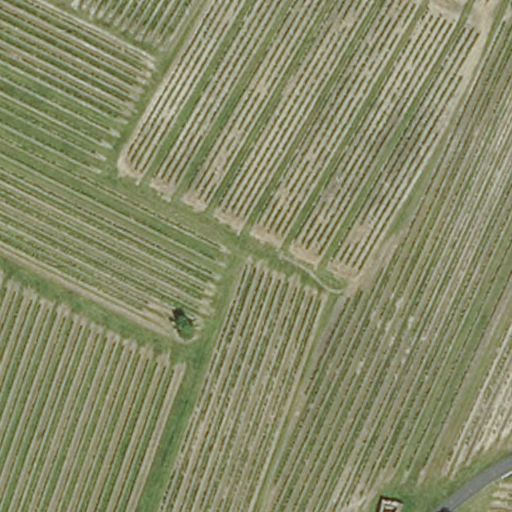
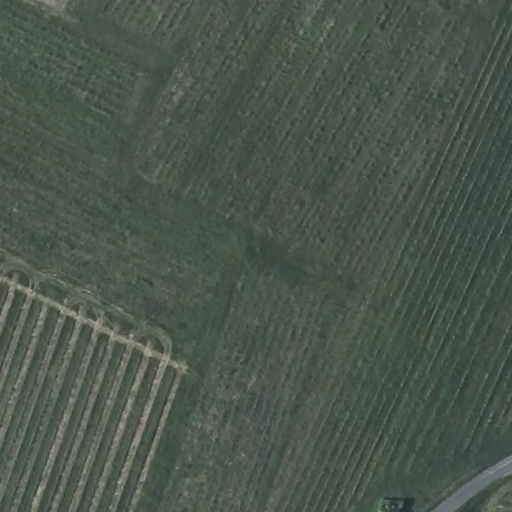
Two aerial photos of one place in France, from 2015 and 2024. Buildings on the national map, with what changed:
unchanged [(408,507),(406,512),(389,512),(392,504),(408,507)]

